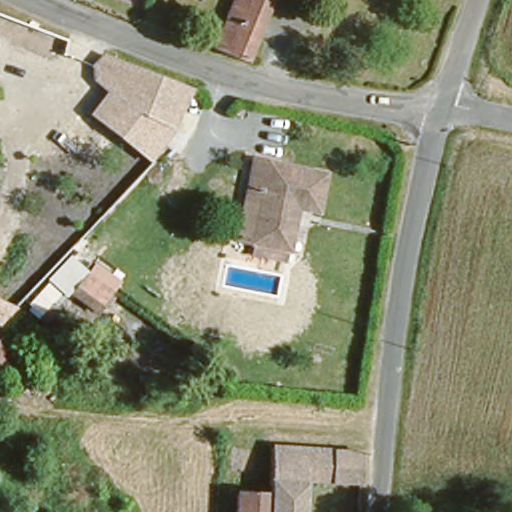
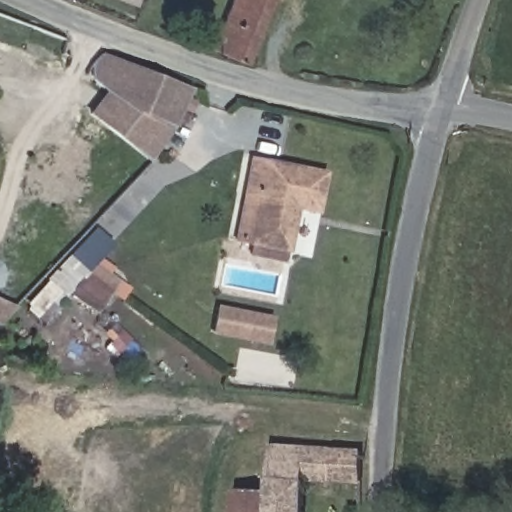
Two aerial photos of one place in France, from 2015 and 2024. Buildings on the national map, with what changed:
unchanged [(207,43),(225,0),(265,0),(241,56),(207,43)]
unchanged [(175,130),(149,162),(89,114),(105,91),(91,79),(90,66),(103,53),(191,89),(175,130)]
unchanged [(237,187),(245,153),(318,168),(311,205),(291,202),(288,214),(282,245),(242,238),(228,235),(237,187)]
unchanged [(120,282),(95,313),(67,294),(40,324),(21,308),(69,255),(86,271),(94,262),(120,282)]
new [(268,345),(210,335),(215,305),(273,317),(268,345)]
unchanged [(0,361),(0,343),(10,353),(0,361)]
unchanged [(260,488),(262,442),(354,445),(353,478),(297,476),(294,512),(258,512),(260,488)]
unchanged [(230,486),(260,488),(258,512),(228,512),(230,486)]

